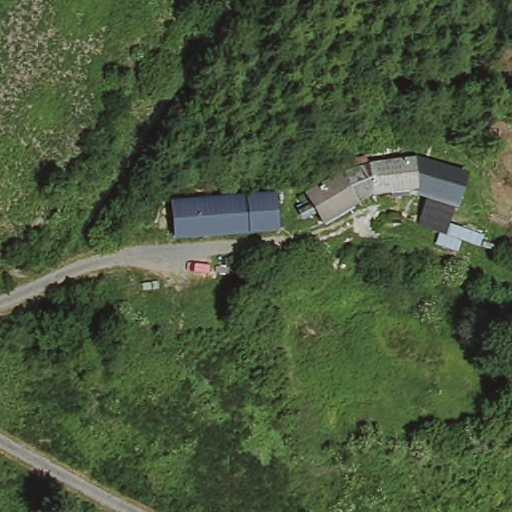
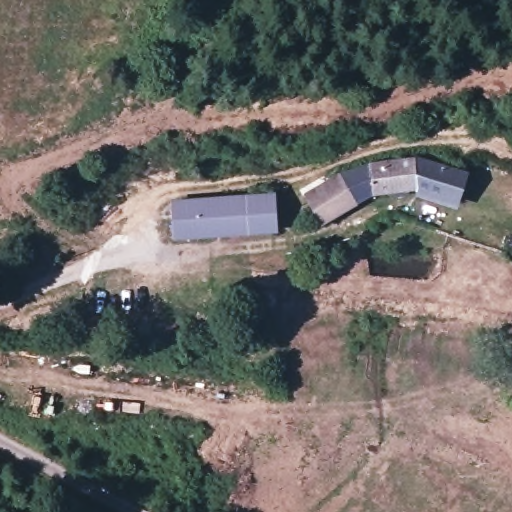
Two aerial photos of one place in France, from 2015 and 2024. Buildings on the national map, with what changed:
unchanged [(315,219),(300,190),(340,167),(355,159),(411,151),(413,188),(356,194),(343,201),(315,219)]
unchanged [(411,151),(470,170),(450,232),(417,225),(425,192),(413,188),(411,151)]
unchanged [(173,195),(277,190),(278,227),(175,234),(173,195)]

